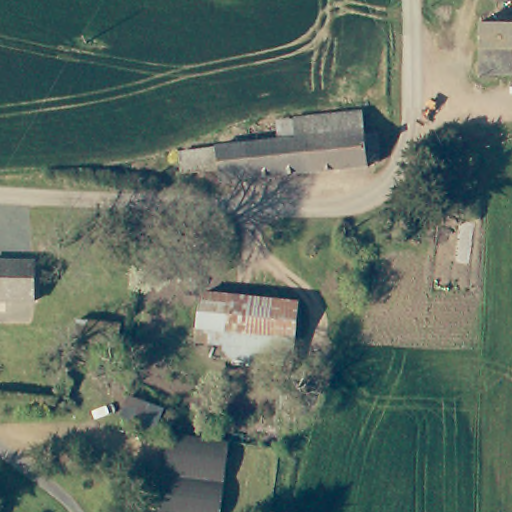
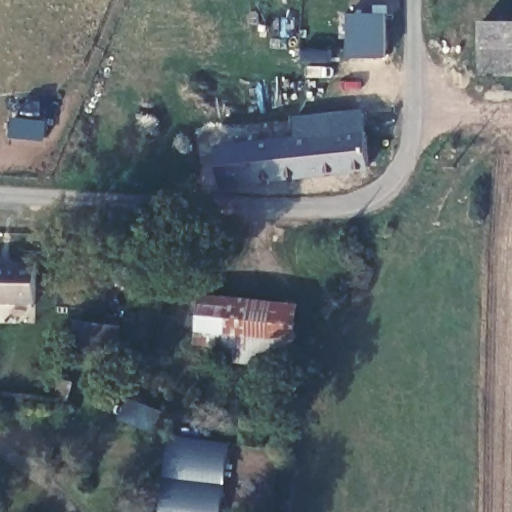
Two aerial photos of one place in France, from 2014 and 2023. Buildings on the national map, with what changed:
new [(385,58),(352,58),(351,13),(386,14),(385,58)]
unchanged [(482,77),(482,24),(512,25),(512,78),(482,77)]
unchanged [(363,135),(376,135),(378,163),(368,166),(310,171),(310,178),(219,183),(219,172),(182,174),(180,151),(214,148),(295,140),(294,121),(362,115),(363,135)]
unchanged [(33,303),(0,302),(0,265),(34,265),(33,303)]
unchanged [(205,296),(300,306),(296,368),(226,360),(229,332),(202,330),(205,296)]
unchanged [(75,339),(78,321),(121,326),(120,343),(75,339)]
unchanged [(168,439),(228,445),(220,512),(160,512),(168,439)]

